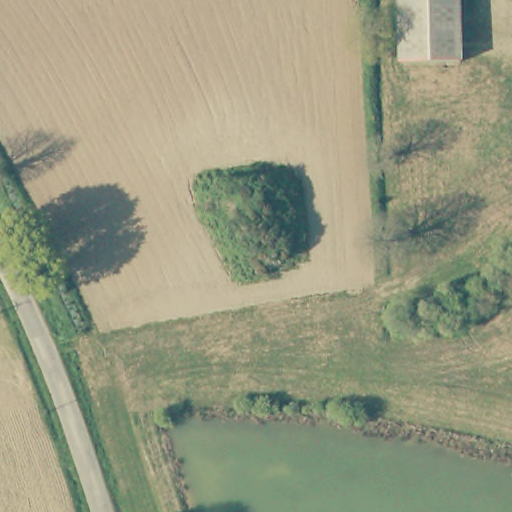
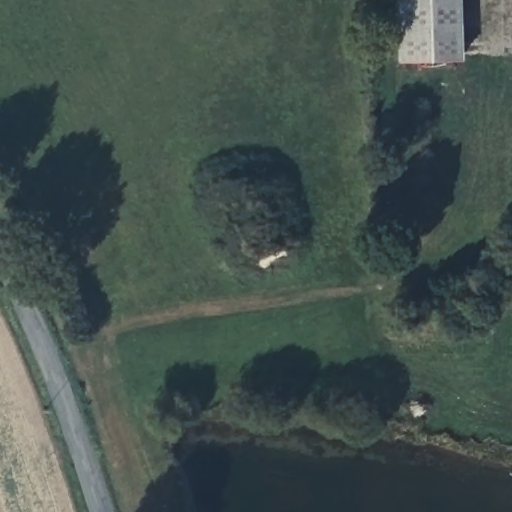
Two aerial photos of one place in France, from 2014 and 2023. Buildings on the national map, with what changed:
unchanged [(453,59),(395,61),(393,0),(450,0),(453,59)]

